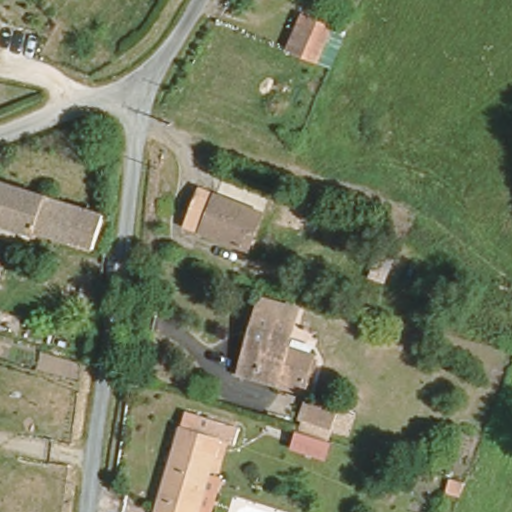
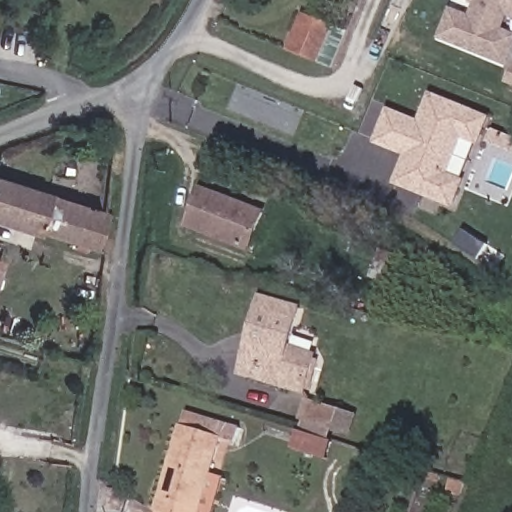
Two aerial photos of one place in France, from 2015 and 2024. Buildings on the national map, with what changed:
new [(505,11),(497,29),(512,34),(512,42),(504,61),(440,35),(450,9),(467,16),(473,0),(512,0),(512,14),(505,11)]
unchanged [(310,11),(325,19),(336,23),(328,40),(320,60),(293,49),(310,11)]
new [(512,66),(512,82),(506,80),(512,66)]
new [(392,163),(398,150),(370,138),(384,110),(414,124),(428,95),(484,118),(473,141),(457,134),(439,172),(455,179),(444,202),(405,185),(386,177),(392,163)]
unchanged [(91,244),(30,224),(29,225),(0,215),(0,176),(104,211),(91,244)]
unchanged [(188,222),(202,186),(265,210),(251,247),(188,222)]
unchanged [(305,380),(303,387),(276,379),(239,369),(242,357),(257,295),(296,304),(287,341),(311,347),(311,351),(319,353),(316,365),(312,382),(305,380)]
unchanged [(301,413),(305,395),(335,402),(331,421),(301,413)]
unchanged [(155,508),(177,424),(190,427),(194,412),(234,422),(230,437),(215,434),(194,512),(154,512),(155,508)]

